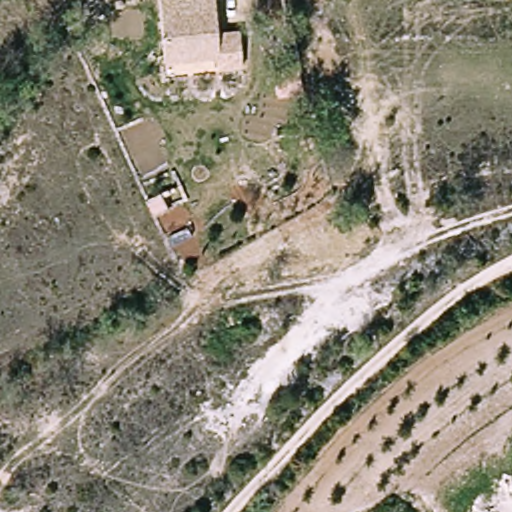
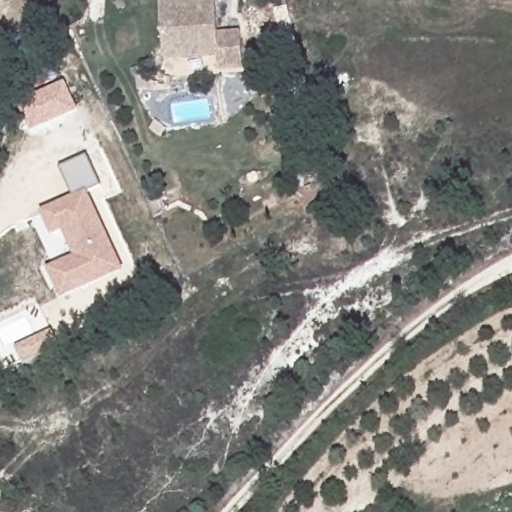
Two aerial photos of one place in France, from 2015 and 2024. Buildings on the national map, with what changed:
unchanged [(216,0),(219,33),(242,31),(244,66),(219,68),(218,55),(166,59),(162,0),(216,0)]
new [(75,256),(63,231),(53,236),(41,212),(75,197),(59,167),(87,154),(101,184),(88,191),(125,270),(62,299),(48,268),(75,256)]

